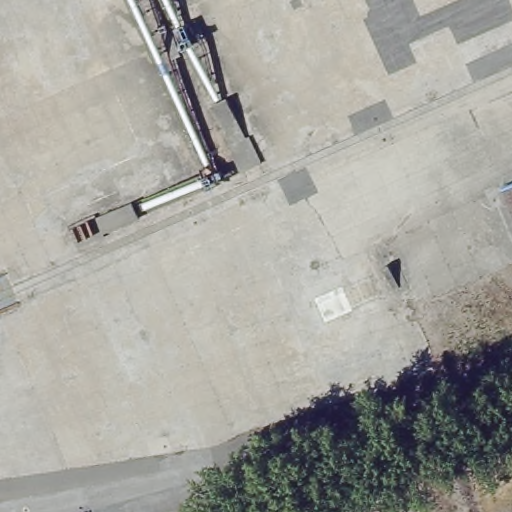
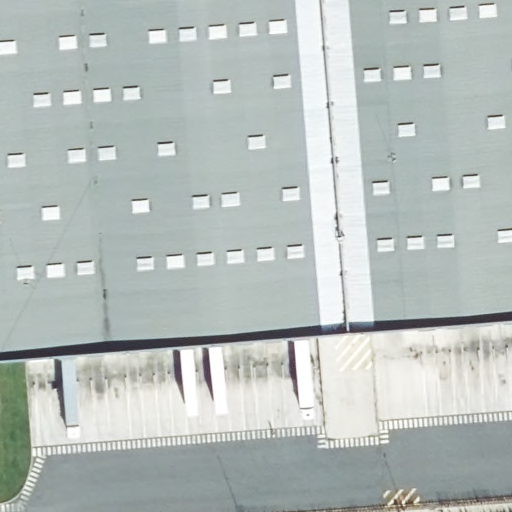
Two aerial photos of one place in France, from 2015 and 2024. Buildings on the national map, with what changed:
new [(0,355),(0,0),(512,0),(512,315),(0,355)]
demolished [(512,182),(512,210),(501,187),(512,182)]

